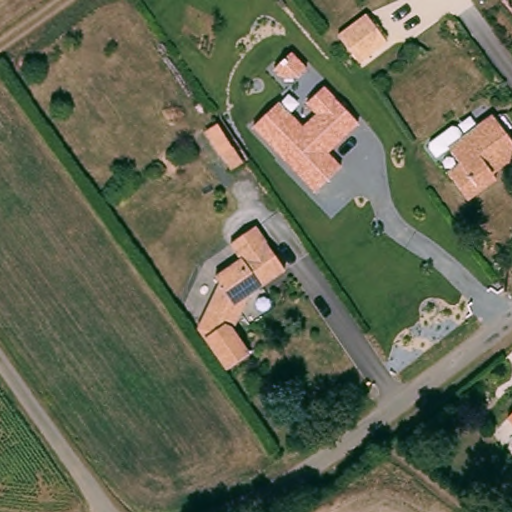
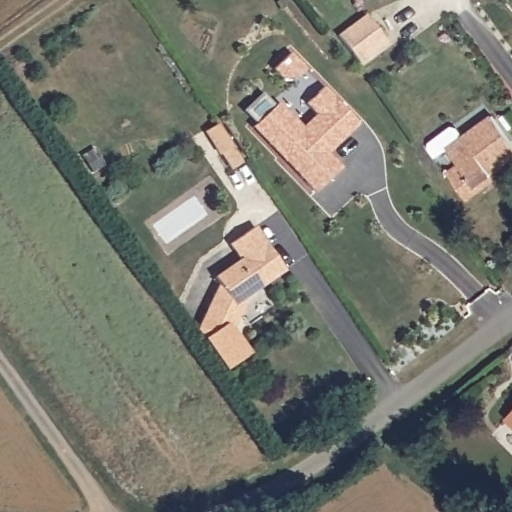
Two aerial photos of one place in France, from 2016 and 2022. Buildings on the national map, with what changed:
unchanged [(375,51),(357,63),(336,34),(368,14),(378,31),(387,44),(375,51)]
unchanged [(359,125),(328,154),(341,167),(313,191),(252,127),(280,101),(302,126),(317,115),(307,104),(325,86),(359,125)]
unchanged [(485,116),(512,151),(512,154),(477,180),(451,142),(485,116)]
unchanged [(212,127),(228,151),(217,157),(203,134),(212,127)]
unchanged [(477,180),(471,184),(473,190),(459,200),(440,175),(453,165),(443,149),(451,142),(477,180)]
unchanged [(253,227),(282,272),(268,283),(235,239),(253,227)]
unchanged [(235,239),(268,283),(245,301),(224,328),(241,352),(219,368),(190,327),(210,298),(202,286),(229,267),(219,250),(235,239)]
unchanged [(512,412),(512,427),(504,421),(512,412)]

